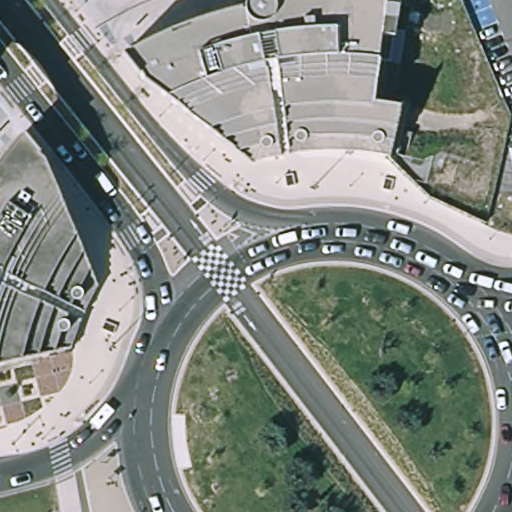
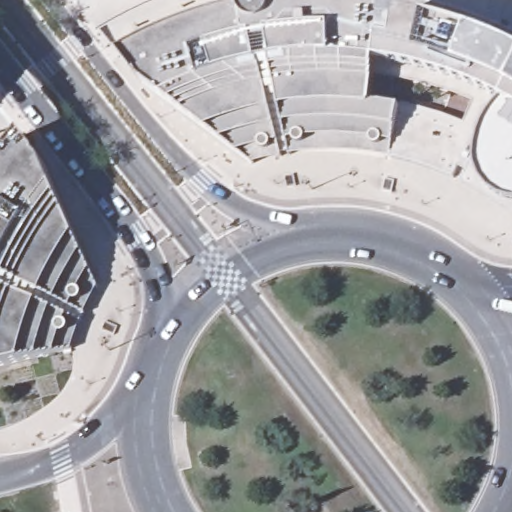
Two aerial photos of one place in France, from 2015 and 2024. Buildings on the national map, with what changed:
unchanged [(233,154),(220,147),(206,140),(195,131),(182,122),(171,112),(161,101),(151,90),(121,52),(139,42),(158,33),(178,24),(198,17),(218,10),(239,5),(240,1),(240,0),(398,0),(389,61),(375,59),(368,101),(395,105),(388,153),(370,151),(353,149),(335,149),(318,149),(300,151),(283,154),(266,158),(252,162),(246,160),(233,154)]
new [(465,20),(507,36),(512,39),(512,213),(510,211),(498,202),(475,187),(450,175),(403,158),(388,153),(395,105),(395,102),(410,106),(445,115),(463,123),(472,102),(451,92),(409,80),(373,68),(375,59),(389,61),(397,4),(427,9),(465,20)]
unchanged [(0,365),(0,145),(13,130),(29,149),(98,272),(90,286),(82,300),(75,315),(69,330),(63,350),(0,365)]
demolished [(480,168),(488,134),(503,138),(485,201),(427,186),(431,170),(442,173),(445,159),(480,168)]

